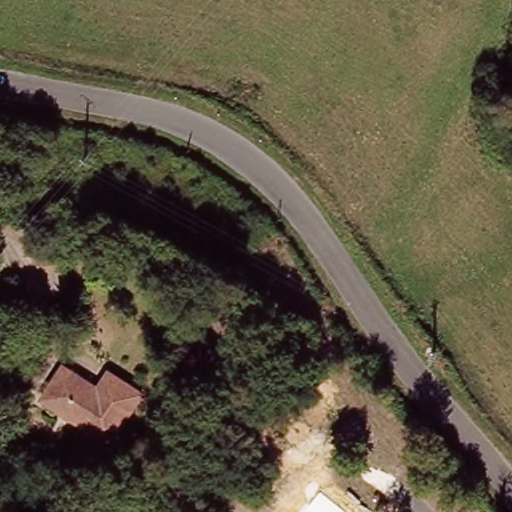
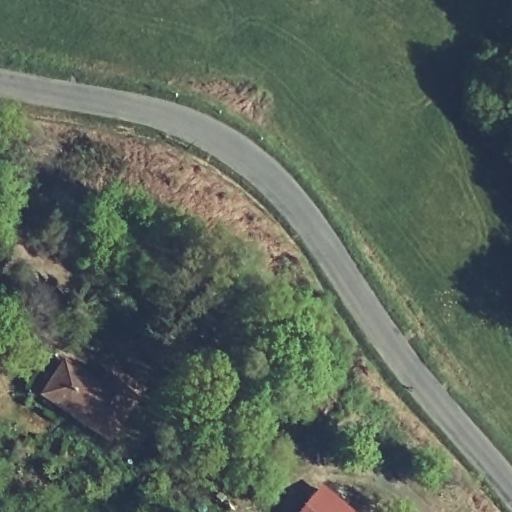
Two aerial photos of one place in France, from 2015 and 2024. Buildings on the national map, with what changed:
unchanged [(45,394),(64,363),(99,386),(110,368),(143,391),(111,438),(45,394)]
new [(352,512),(299,512),(320,486),(352,512)]

